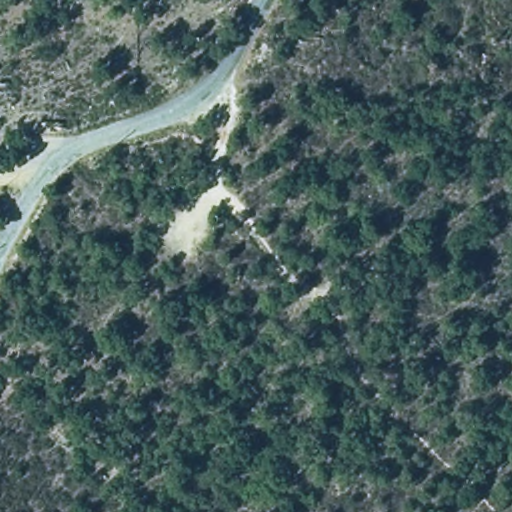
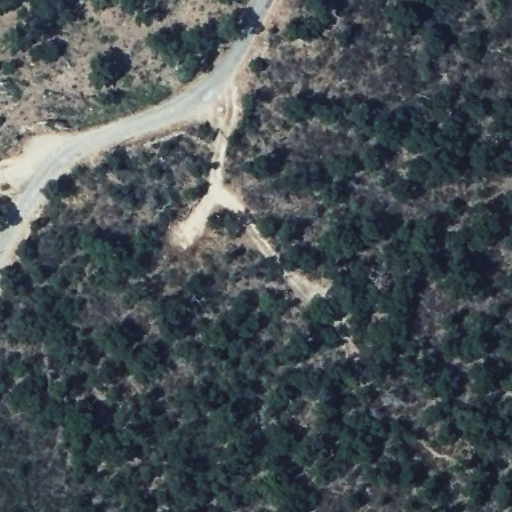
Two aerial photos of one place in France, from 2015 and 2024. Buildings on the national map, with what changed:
unchanged [(511,357),(512,357),(512,370),(511,357)]

